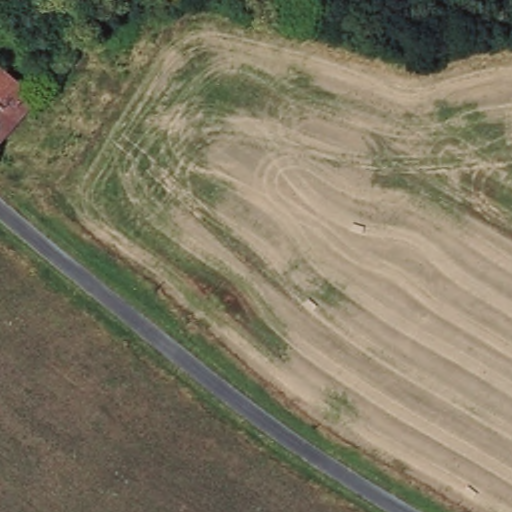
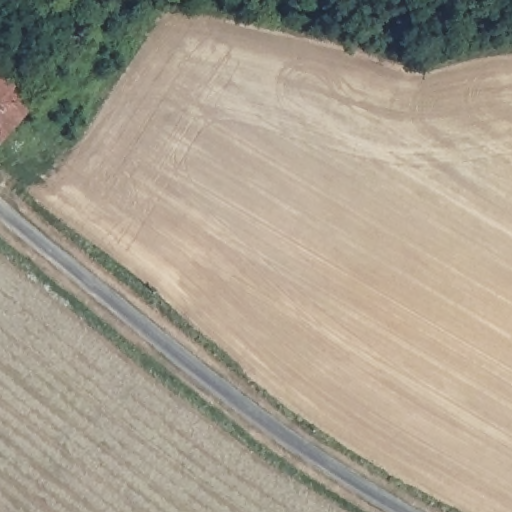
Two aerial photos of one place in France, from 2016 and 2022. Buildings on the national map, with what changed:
unchanged [(2,141),(0,139),(0,73),(36,102),(2,141)]

